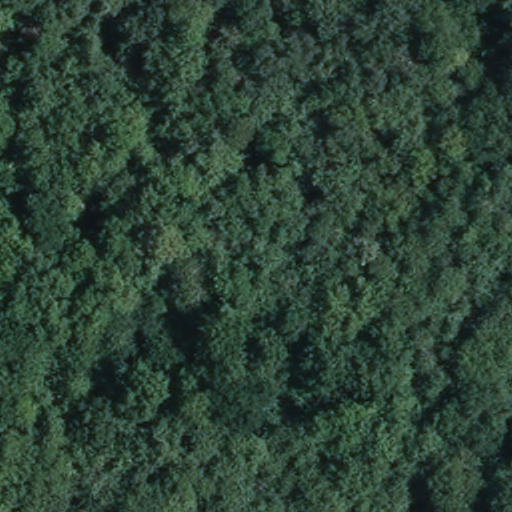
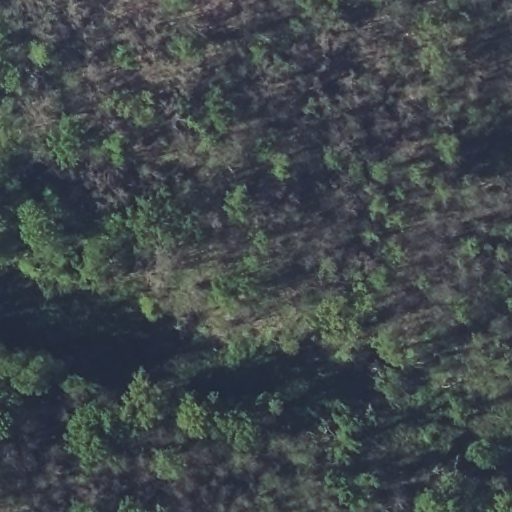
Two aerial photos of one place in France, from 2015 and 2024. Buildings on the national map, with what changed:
[]

